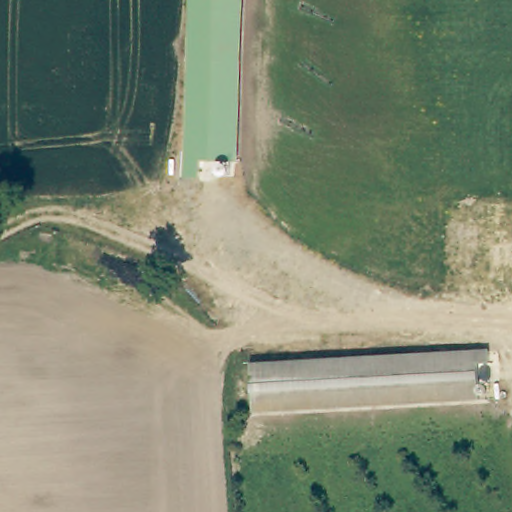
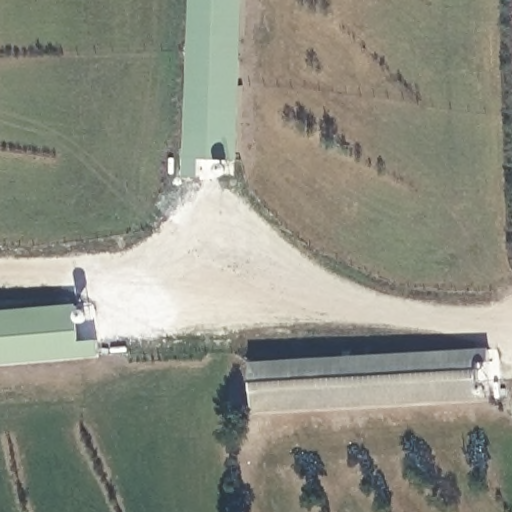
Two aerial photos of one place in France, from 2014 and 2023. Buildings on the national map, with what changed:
unchanged [(198,160),(197,176),(185,176),(192,0),(245,0),(237,160),(198,160)]
new [(76,304),(80,341),(97,340),(99,356),(0,363),(0,311),(76,304)]
unchanged [(491,347),(491,358),(477,359),(478,396),(254,407),(252,360),(491,347)]

